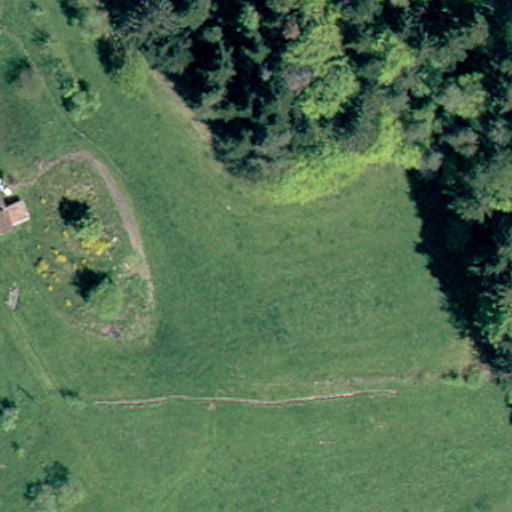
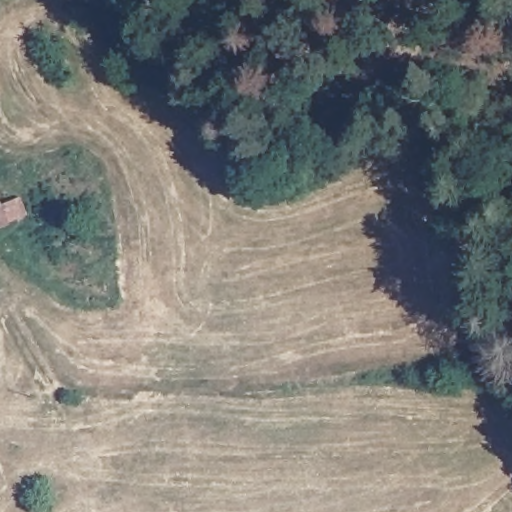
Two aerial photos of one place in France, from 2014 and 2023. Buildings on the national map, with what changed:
unchanged [(10,215),(12,214),(16,220),(14,221),(15,224),(0,233),(0,199),(10,215)]

